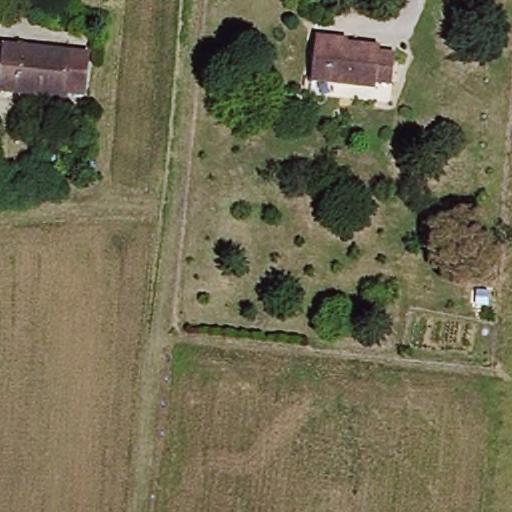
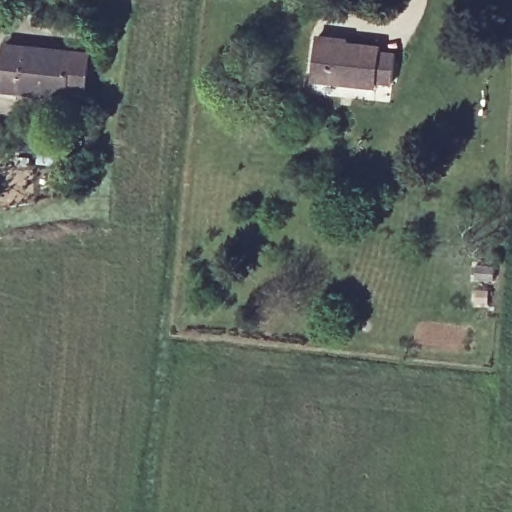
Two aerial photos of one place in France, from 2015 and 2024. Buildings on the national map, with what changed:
unchanged [(312,54),(314,37),(373,40),(371,49),(391,51),(388,84),(370,84),(370,90),(309,86),(312,54)]
unchanged [(72,51),(71,54),(90,56),(86,94),(67,92),(66,96),(1,90),(6,45),(72,51)]

